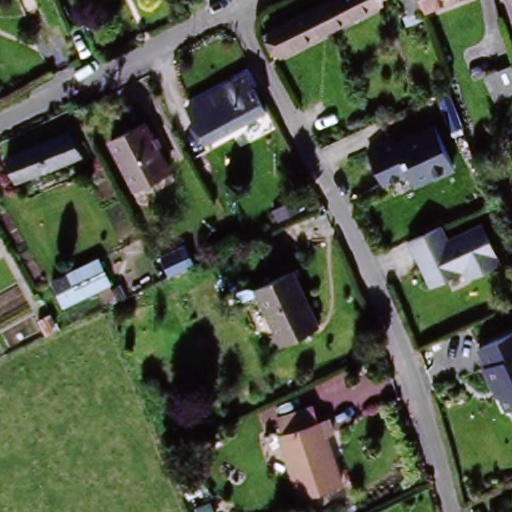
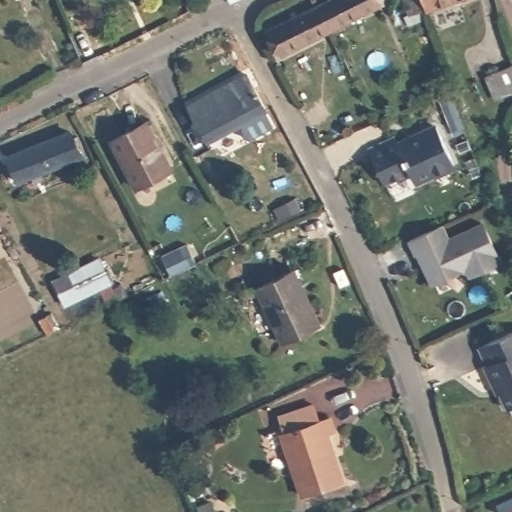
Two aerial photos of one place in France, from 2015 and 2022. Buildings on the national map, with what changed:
unchanged [(330,0),(382,0),(385,7),(331,35),(319,11),(332,4),(330,0)]
unchanged [(419,0),(420,4),(405,10),(401,0),(419,0)]
unchanged [(423,0),(434,0),(425,3),(423,0)]
unchanged [(282,60),(277,50),(270,52),(265,41),(319,11),(331,35),(282,60)]
unchanged [(494,102),(485,79),(512,67),(512,94),(494,102)]
unchanged [(207,141),(196,121),(188,104),(247,75),(250,82),(266,111),(207,141)]
unchanged [(114,142),(147,126),(172,171),(137,190),(114,142)]
unchanged [(392,138),(395,145),(410,140),(409,137),(435,127),(451,167),(444,169),(445,172),(437,175),(430,177),(430,176),(415,182),(408,178),(405,171),(379,182),(365,149),(392,138)]
unchanged [(72,129),(82,153),(17,178),(8,155),(72,129)]
unchanged [(411,253),(404,237),(435,224),(442,239),(477,224),(494,263),(461,277),(457,270),(424,283),(415,261),(419,259),(415,252),(411,253)]
unchanged [(197,265),(170,277),(162,257),(186,246),(197,265)]
unchanged [(49,284),(95,259),(107,281),(62,307),(49,284)]
unchanged [(257,290),(294,272),(323,327),(285,346),(257,290)]
unchanged [(492,384),(489,385),(481,366),(482,366),(475,347),(512,332),(512,408),(502,412),(492,384)]
unchanged [(280,433),(282,432),(277,416),(311,404),(317,421),(329,417),(334,433),(327,436),(342,483),(300,497),(280,433)]

